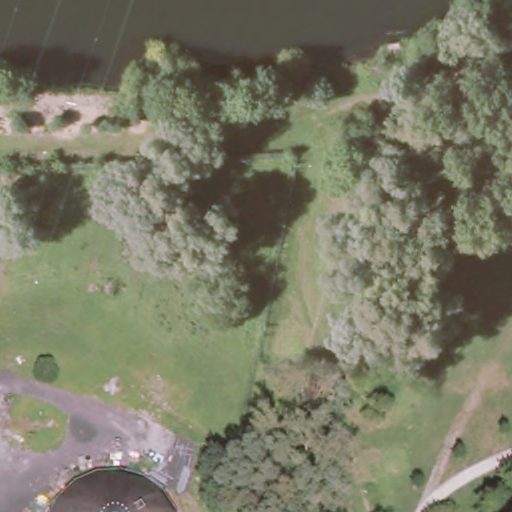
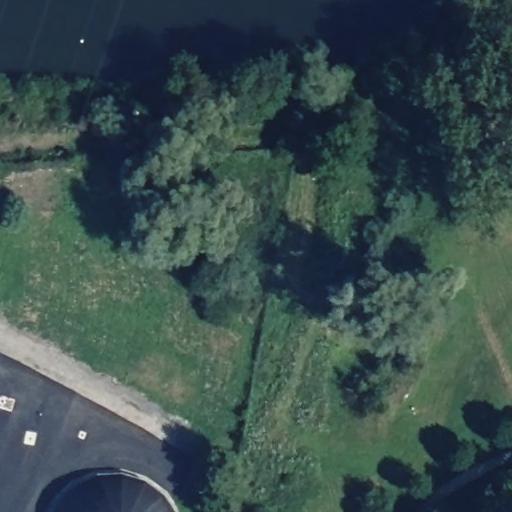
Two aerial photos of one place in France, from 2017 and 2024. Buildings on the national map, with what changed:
unchanged [(76,486),(103,479),(130,482),(154,493),(173,510),(173,512),(54,512),(54,509),(76,486)]

